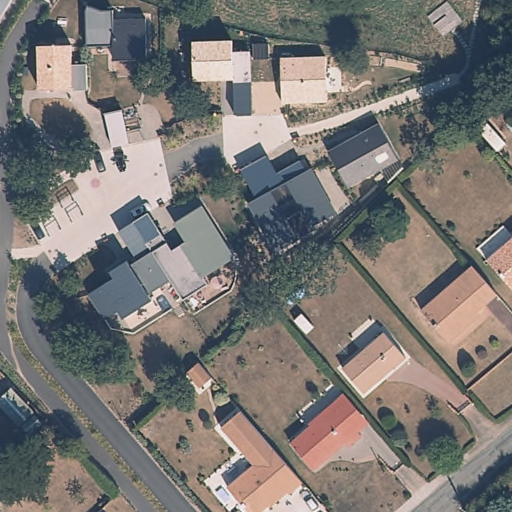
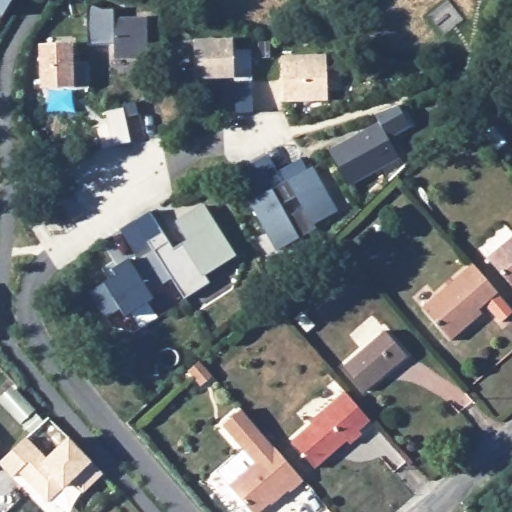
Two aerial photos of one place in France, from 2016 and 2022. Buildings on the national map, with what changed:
unchanged [(4,17),(0,23),(0,0),(14,0),(4,17)]
unchanged [(114,44),(89,46),(90,6),(102,11),(114,10),(114,20),(146,19),(149,60),(118,61),(114,44)]
unchanged [(231,39),(234,51),(250,50),(255,115),(237,116),(234,80),(196,83),(195,41),(231,39)]
unchanged [(42,45),(76,44),(75,66),(89,65),(89,88),(74,89),(40,90),(42,45)]
unchanged [(325,56),(327,101),(284,103),(282,57),(325,56)]
unchanged [(106,112),(124,109),(138,105),(146,140),(132,144),(113,147),(106,112)]
unchanged [(399,160),(351,187),(331,152),(379,124),(399,160)]
unchanged [(315,227),(317,229),(276,251),(249,203),(254,201),(239,173),(268,156),(278,174),(301,160),(307,171),(312,167),(338,212),(315,227)]
unchanged [(206,277),(210,285),(186,300),(173,281),(149,293),(151,297),(126,316),(122,309),(104,318),(90,293),(105,286),(117,279),(114,271),(129,262),(138,260),(121,232),(149,213),(169,244),(173,250),(187,241),(176,223),(204,206),(237,257),(206,277)]
unchanged [(512,241),(512,294),(485,263),(512,241)]
unchanged [(475,320),(450,341),(423,309),(472,267),(496,296),(472,317),(475,320)]
unchanged [(387,338),(408,364),(398,374),(395,371),(380,383),(381,386),(368,396),(348,371),(387,338)]
unchanged [(210,366),(223,381),(212,391),(199,376),(210,366)]
unchanged [(32,436),(22,425),(20,426),(0,403),(0,399),(14,387),(46,423),(32,436)]
unchanged [(350,445),(345,440),(329,453),(329,455),(316,467),(293,441),(323,416),(323,413),(336,403),(346,393),(370,422),(359,431),(362,435),(350,445)]
unchanged [(242,415),(296,478),(301,485),(288,497),(284,492),(261,512),(246,512),(226,488),(257,463),(244,448),(241,451),(222,428),(241,412),(242,415)]
new [(47,457),(67,437),(91,462),(103,474),(83,495),(72,482),(63,490),(47,505),(18,473),(12,479),(0,466),(0,463),(25,437),(47,457)]
unchanged [(0,447),(0,443),(2,445),(0,447)]

